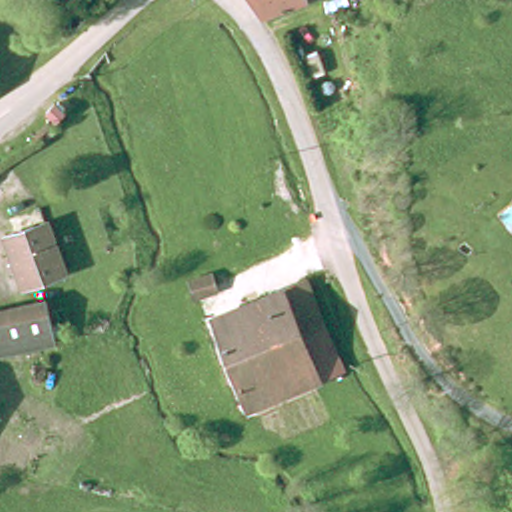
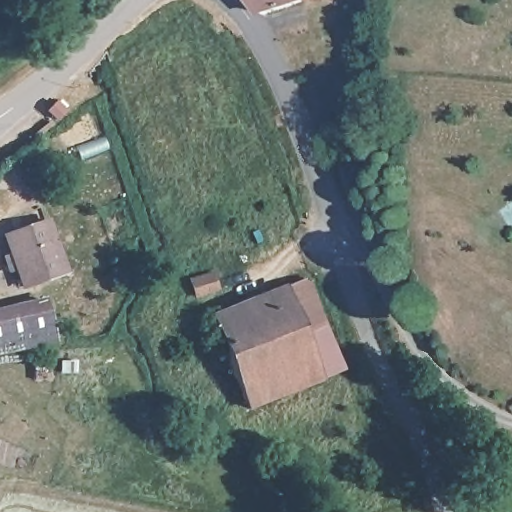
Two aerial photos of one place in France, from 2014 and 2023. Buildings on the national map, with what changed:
unchanged [(265,0),(319,0),(269,14),(265,0)]
unchanged [(52,130),(60,139),(50,149),(45,153),(36,143),(52,130)]
unchanged [(70,278),(27,293),(10,242),(45,229),(52,227),(64,262),(70,278)]
unchanged [(310,285),(330,331),(307,339),(325,383),(254,411),(214,324),(310,285)]
unchanged [(0,355),(0,317),(51,306),(60,343),(0,355)]

